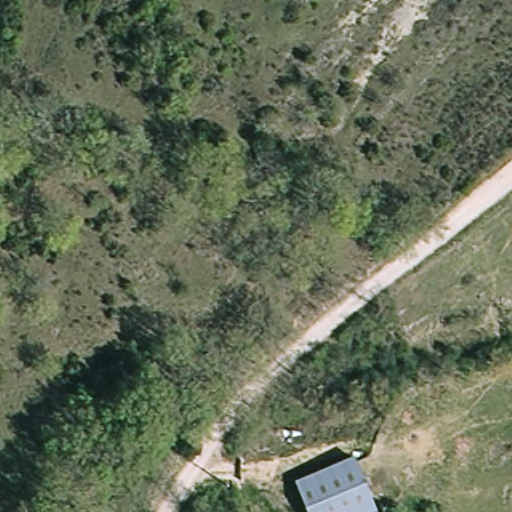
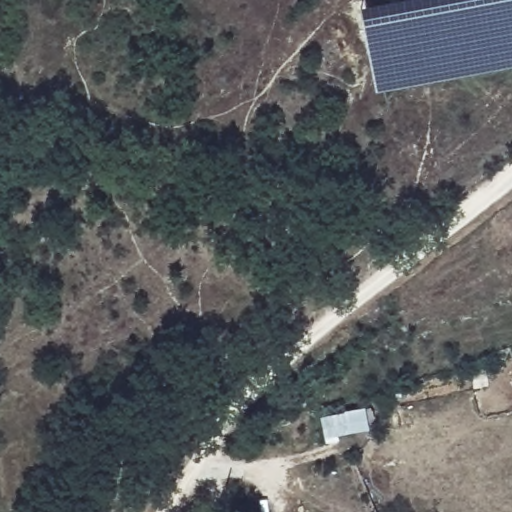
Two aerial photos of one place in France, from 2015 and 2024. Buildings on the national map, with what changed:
new [(377,91),(360,5),(390,0),(512,0),(512,66),(377,91)]

